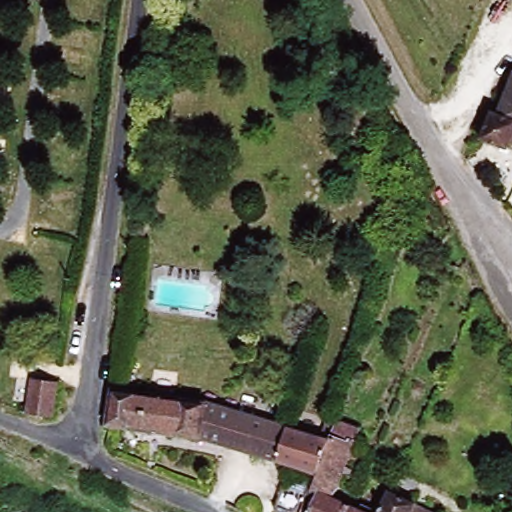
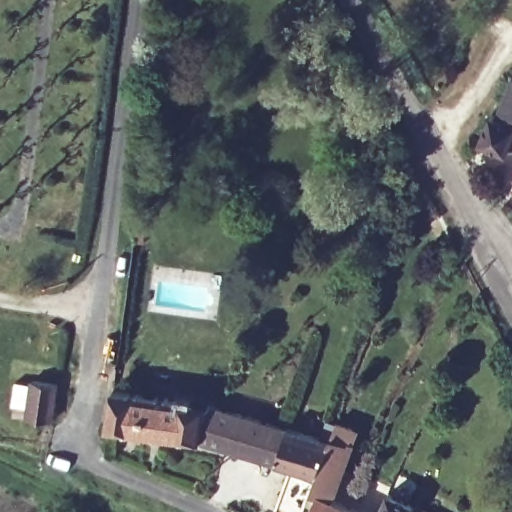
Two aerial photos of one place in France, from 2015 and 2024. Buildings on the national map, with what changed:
unchanged [(510,75),(512,74),(512,141),(510,140),(504,147),(471,135),(483,103),(497,109),(510,75)]
unchanged [(57,378),(48,415),(28,412),(33,376),(57,378)]
unchanged [(302,477),(224,448),(157,434),(110,425),(114,390),(192,400),(247,415),(249,409),(267,415),(263,423),(330,448),(338,427),(357,434),(332,503),(353,512),(290,512),(302,477)]
unchanged [(423,512),(377,512),(384,494),(423,512)]

